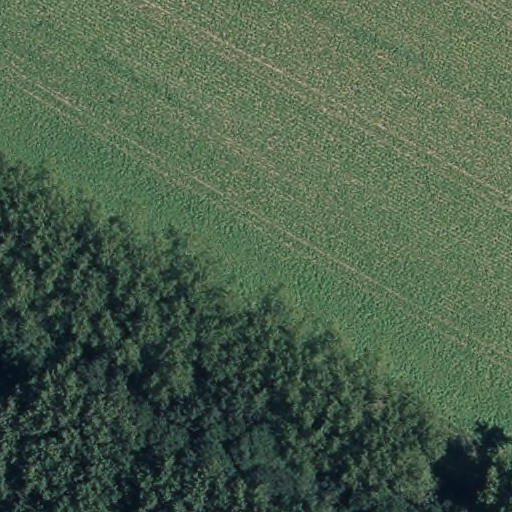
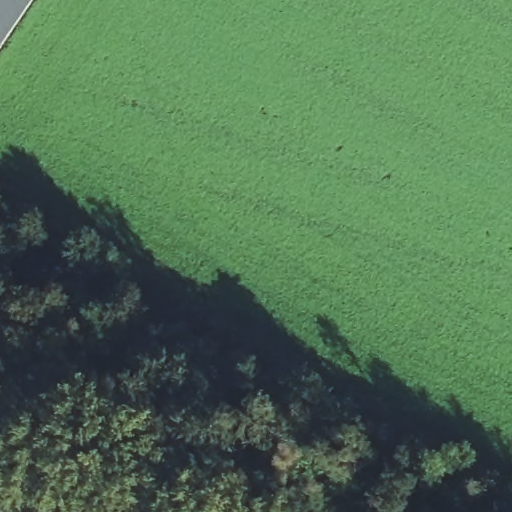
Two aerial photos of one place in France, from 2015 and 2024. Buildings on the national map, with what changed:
new [(34,0),(0,49),(0,0),(34,0)]

